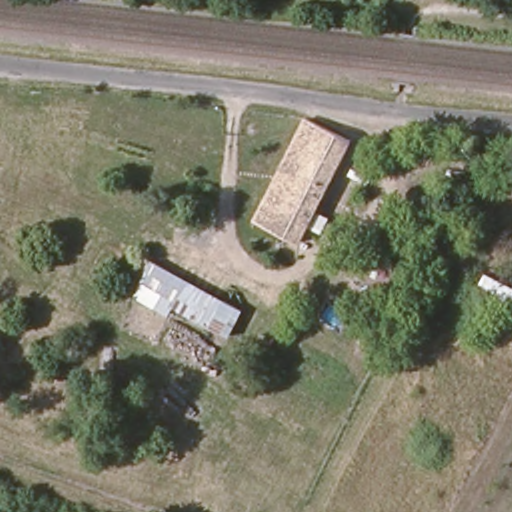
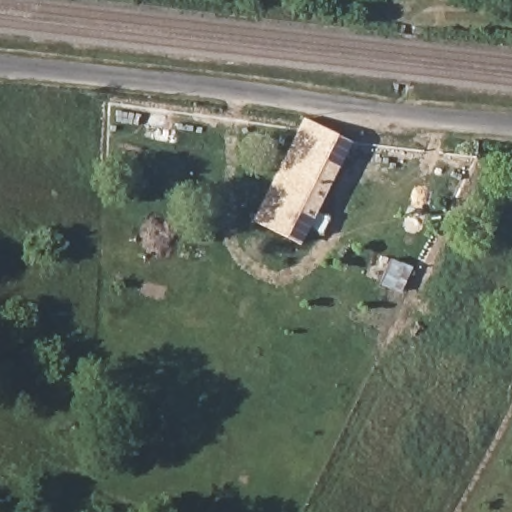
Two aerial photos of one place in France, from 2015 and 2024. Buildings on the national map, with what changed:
unchanged [(310,118),(354,140),(303,241),(260,219),(301,135),(310,118)]
unchanged [(405,146),(405,145),(407,142),(412,143),(413,141),(446,151),(441,165),(406,155),(402,167),(384,161),(389,149),(403,153),(405,146)]
demolished [(228,299),(212,328),(174,310),(170,317),(133,298),(155,260),(228,299)]

